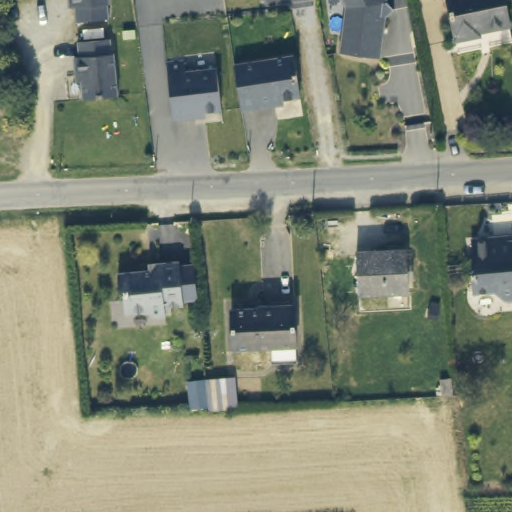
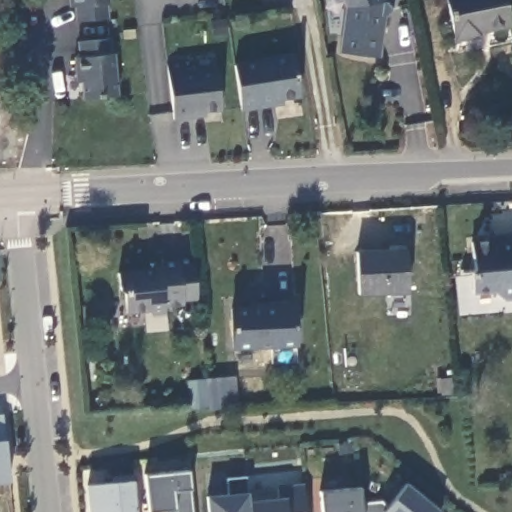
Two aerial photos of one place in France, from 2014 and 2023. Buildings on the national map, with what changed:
unchanged [(114,4),(111,5),(112,19),(80,23),(78,8),(74,8),(73,0),(114,0),(114,4)]
unchanged [(344,2),(343,0),(388,0),(392,3),(391,6),(385,10),(383,10),(377,52),(338,47),(344,2)]
unchanged [(447,0),(501,0),(507,30),(478,37),(478,40),(456,45),(447,0)]
unchanged [(114,45),(116,60),(118,59),(122,101),(87,104),(85,80),(80,81),(78,63),(83,63),(81,48),(114,45)]
unchanged [(294,50),(300,90),(276,94),(276,99),(242,104),(241,104),(235,59),(294,50)]
unchanged [(167,55),(184,53),(186,65),(217,62),(221,103),(194,106),(195,110),(174,112),(167,55)]
unchanged [(499,290),(477,291),(477,269),(478,268),(477,241),(504,240),(504,246),(512,246),(512,299),(508,299),(499,290)]
unchanged [(408,248),(410,289),(361,293),(358,251),(408,248)]
unchanged [(169,270),(169,264),(189,263),(192,305),(174,307),(174,316),(161,317),(158,311),(135,313),(134,293),(129,290),(128,273),(169,270)]
unchanged [(295,306),(296,348),(234,348),(234,307),(295,306)]
unchanged [(438,382),(447,382),(449,401),(439,401),(438,382)]
new [(151,511),(148,475),(189,471),(190,489),(193,512),(176,512),(175,509),(151,511)]
new [(112,475),(132,473),(133,481),(133,480),(137,512),(89,512),(87,485),(116,482),(112,475)]
new [(249,500),(279,497),(276,486),(303,483),(306,512),(202,512),(201,499),(205,492),(228,489),(226,478),(245,477),(247,487),(249,500)]
new [(362,503),(392,499),(407,482),(442,511),(441,512),(321,512),(319,492),(359,488),(362,503)]

